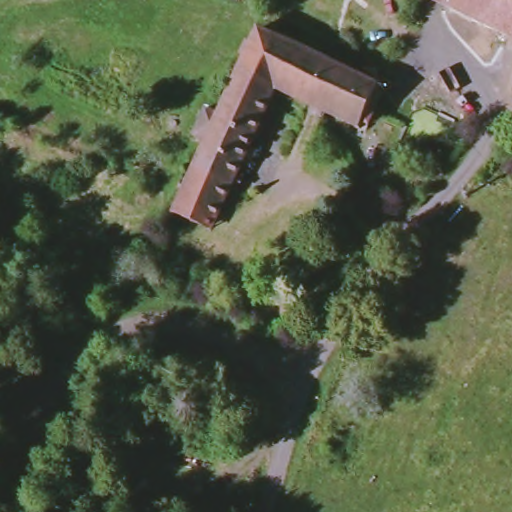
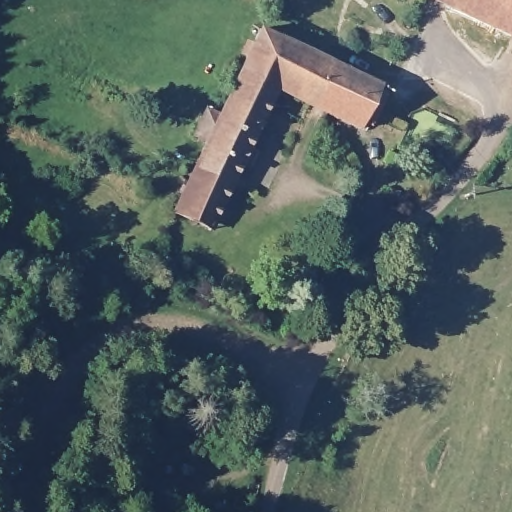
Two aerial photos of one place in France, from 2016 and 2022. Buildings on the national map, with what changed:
unchanged [(433,0),(460,0),(455,11),(433,0)]
unchanged [(455,11),(460,0),(512,0),(512,37),(455,11)]
unchanged [(388,91),(366,136),(283,96),(214,226),(178,207),(261,30),(388,91)]

